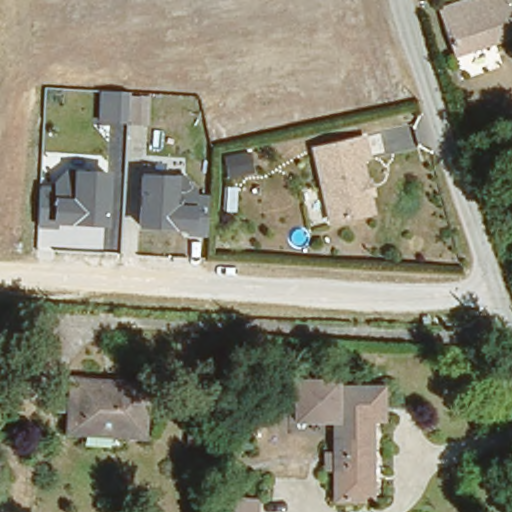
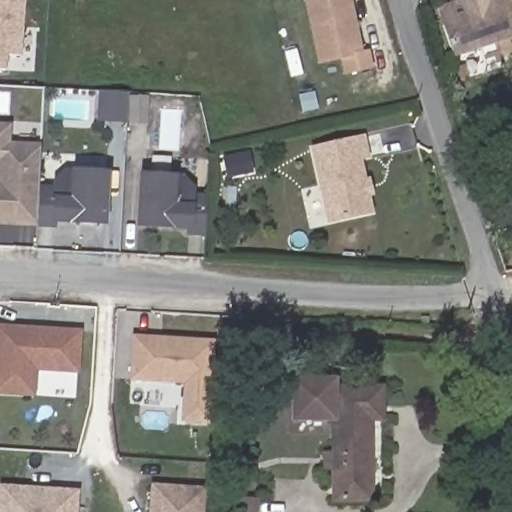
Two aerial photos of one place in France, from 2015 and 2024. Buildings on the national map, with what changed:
new [(8,56),(7,70),(0,70),(0,0),(25,0),(22,56),(8,56)]
new [(372,69),(343,75),(341,59),(318,64),(304,0),(351,0),(362,50),(368,48),(372,69)]
unchanged [(452,47),(436,0),(509,0),(512,9),(512,27),(452,47)]
new [(127,122),(107,121),(98,121),(100,91),(109,91),(128,92),(127,122)]
new [(130,96),(147,97),(146,125),(129,124),(130,96)]
new [(0,121),(11,121),(11,141),(40,143),(39,186),(35,228),(0,226),(0,121)]
unchanged [(372,209),(329,219),(313,147),(362,135),(366,152),(358,153),(365,179),(362,182),(363,188),(367,190),(372,209)]
unchanged [(108,226),(60,222),(58,229),(35,228),(39,186),(52,184),(67,168),(111,172),(108,226)]
unchanged [(209,238),(189,237),(178,229),(134,229),(138,174),(186,175),(186,179),(192,179),(201,196),(211,196),(209,238)]
unchanged [(3,314),(0,314),(0,296),(4,296),(3,314)]
new [(37,367),(36,393),(0,392),(0,325),(82,329),(80,370),(37,367)]
new [(212,422),(187,421),(189,383),(135,380),(137,337),(154,339),(154,343),(164,343),(164,339),(216,342),(212,422)]
demolished [(72,401),(73,377),(146,383),(145,434),(71,430),(72,411),(61,412),(62,399),(72,401)]
unchanged [(363,411),(368,491),(332,494),(327,419),(326,382),(373,380),(376,411),(372,411),(363,411)]
unchanged [(326,382),(327,419),(290,420),(288,383),(326,382)]
demolished [(206,407),(204,430),(185,428),(186,405),(206,407)]
new [(0,485),(17,486),(17,490),(27,490),(27,487),(79,489),(78,512),(0,512),(0,485)]
new [(157,485),(207,488),(205,512),(154,512),(157,485)]
unchanged [(234,496),(258,498),(258,512),(233,512),(234,496)]

